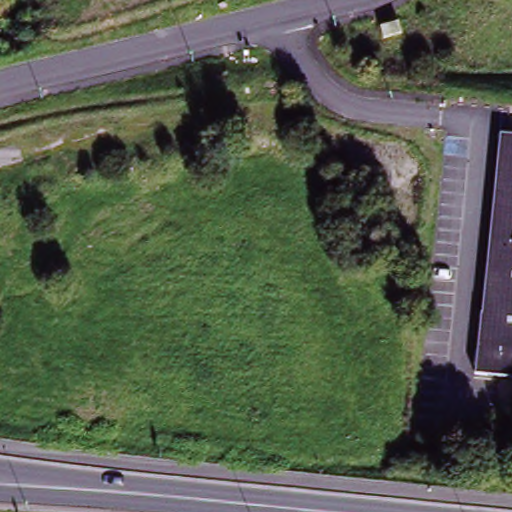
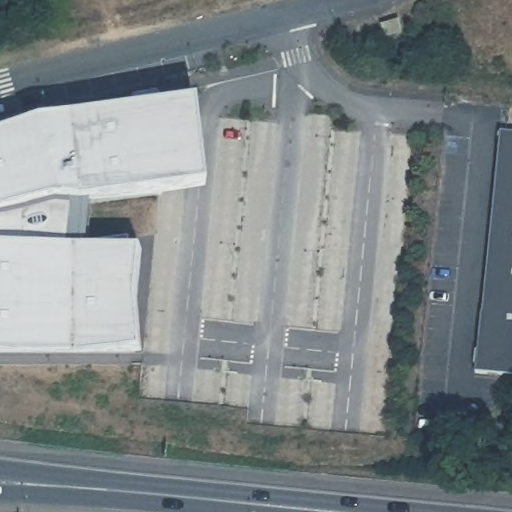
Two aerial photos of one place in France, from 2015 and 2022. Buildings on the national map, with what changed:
new [(93,202),(84,250),(141,252),(136,296),(141,352),(74,357),(24,360),(0,358),(0,137),(43,122),(75,119),(200,106),(210,189),(93,202)]
unchanged [(512,126),(512,371),(482,367),(509,126),(512,126)]

